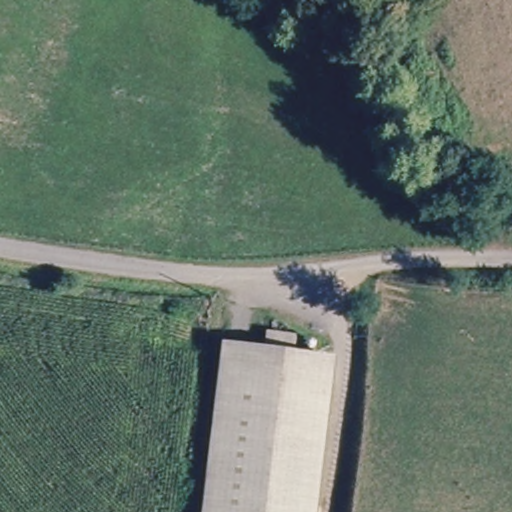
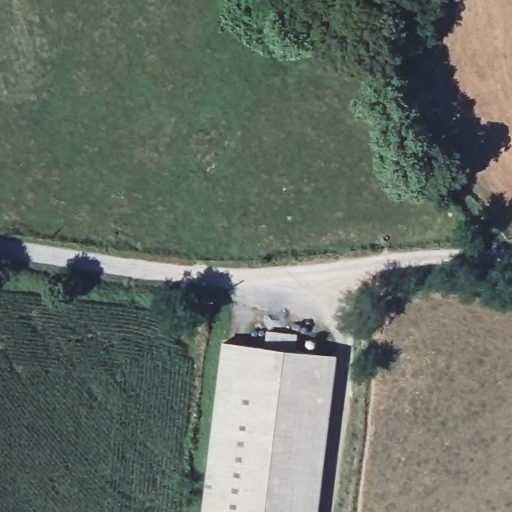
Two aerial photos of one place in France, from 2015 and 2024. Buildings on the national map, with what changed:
unchanged [(265,348),(267,332),(294,335),(292,351),(316,354),(298,512),(203,512),(223,343),(265,348)]
unchanged [(318,512),(298,512),(316,354),(336,356),(318,512)]

